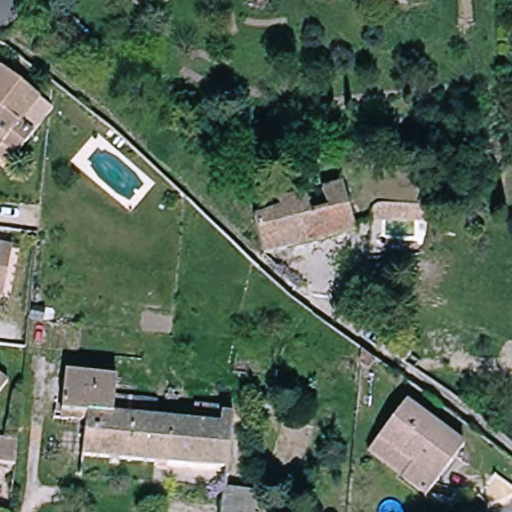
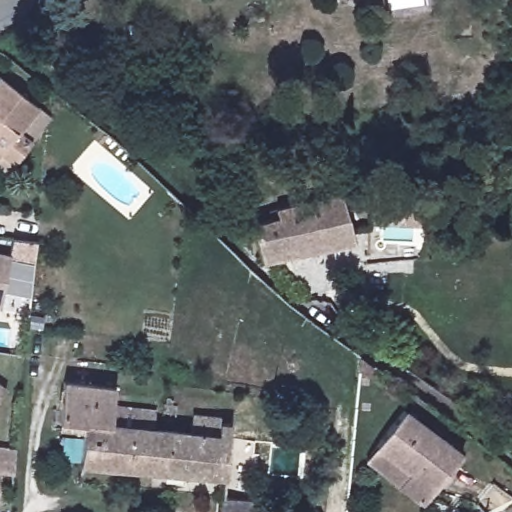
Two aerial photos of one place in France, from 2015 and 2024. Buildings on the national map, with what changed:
unchanged [(429,3),(389,10),(387,0),(429,0),(429,3)]
unchanged [(43,110),(23,134),(37,145),(21,166),(7,156),(4,159),(0,156),(0,87),(5,80),(43,110)]
unchanged [(300,238),(316,235),(313,225),(328,222),(325,206),(346,201),(359,248),(305,262),(300,238)]
unchanged [(316,235),(300,238),(305,262),(266,270),(257,232),(276,227),(274,218),(309,209),(319,207),(321,216),(311,218),(313,225),(316,235)]
unchanged [(427,225),(367,228),(366,213),(427,210),(427,225)]
unchanged [(0,254),(12,256),(5,292),(3,303),(0,303),(0,254)]
unchanged [(0,404),(0,378),(13,387),(0,404)]
unchanged [(161,463),(160,472),(86,464),(88,426),(66,424),(69,387),(117,392),(116,408),(133,411),(131,428),(165,432),(161,463)]
unchanged [(382,443),(410,409),(465,455),(427,500),(405,482),(372,455),(382,443)]
unchanged [(222,438),(223,425),(237,426),(230,480),(160,472),(161,463),(165,432),(222,438)]
unchanged [(253,497),(252,512),(221,512),(223,494),(253,497)]

